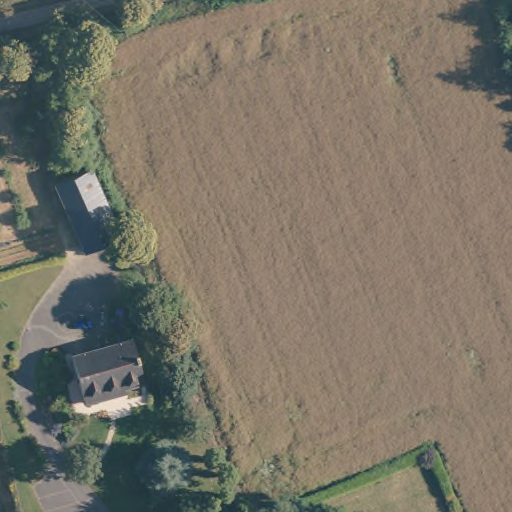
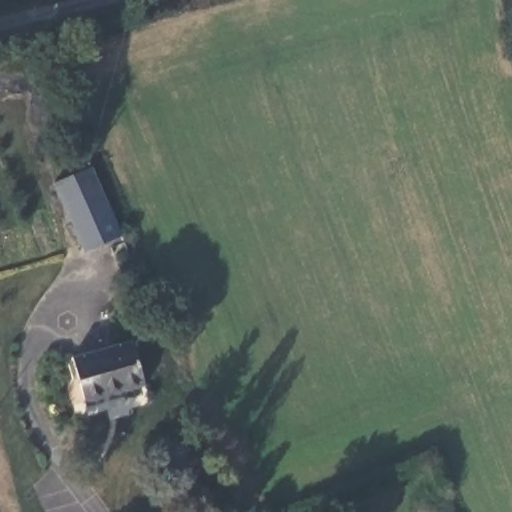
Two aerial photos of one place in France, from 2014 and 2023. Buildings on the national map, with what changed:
unchanged [(80,164),(112,237),(74,254),(42,181),(80,164)]
unchanged [(145,390),(82,408),(71,361),(131,342),(145,390)]

